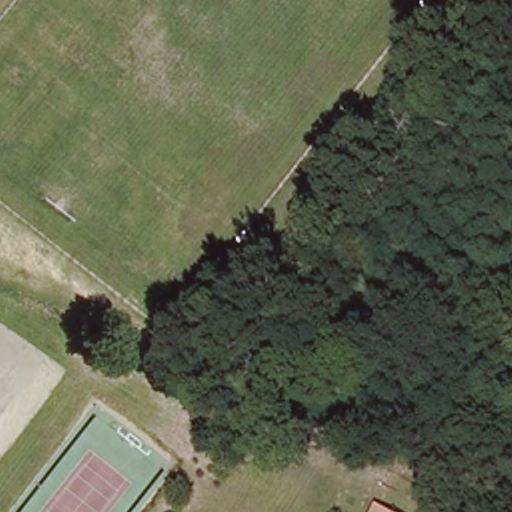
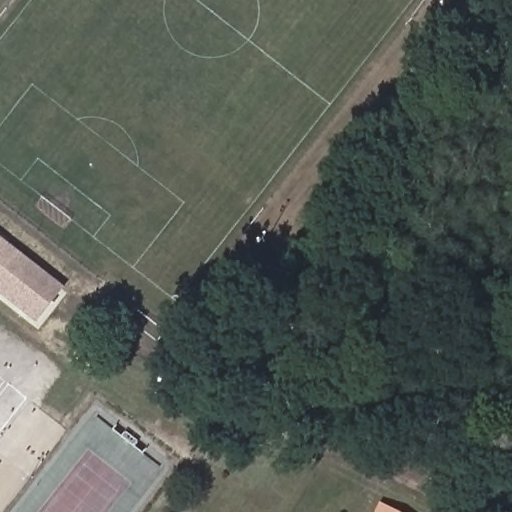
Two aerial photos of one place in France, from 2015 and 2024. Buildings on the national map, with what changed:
new [(0,293),(0,236),(65,287),(37,322),(0,293)]
unchanged [(374,511),(375,512),(374,512),(374,511)]

